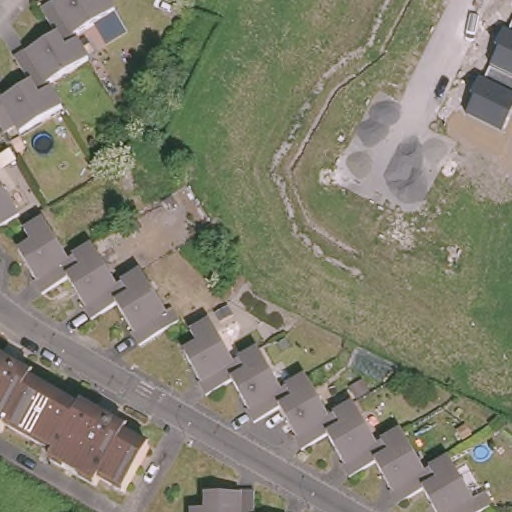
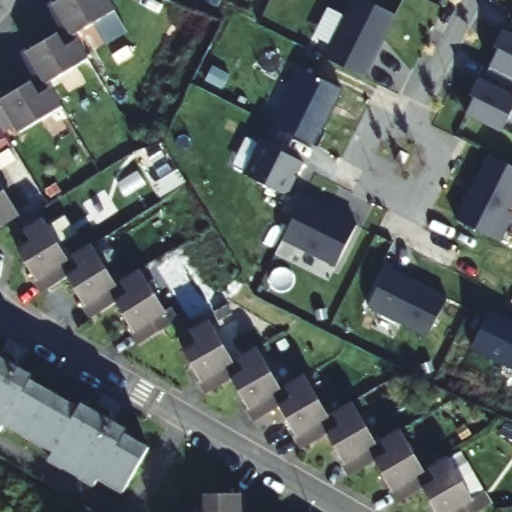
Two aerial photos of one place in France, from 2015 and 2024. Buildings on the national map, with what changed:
unchanged [(5,98),(35,81),(19,55),(32,48),(33,50),(60,34),(45,7),(58,0),(60,1),(61,0),(114,0),(120,10),(78,34),(82,39),(92,58),(52,82),(55,88),(66,106),(23,131),(19,125),(8,131),(0,116),(0,89),(5,98)]
new [(367,0),(397,15),(365,78),(325,58),(354,0),(367,0)]
unchanged [(503,134),(465,114),(474,98),(470,95),(479,76),(485,79),(497,53),(492,51),(503,28),(508,30),(512,24),(512,116),(503,134)]
new [(277,122),(305,69),(342,88),(320,129),(325,133),(318,145),(277,122)]
new [(303,161),(288,194),(248,177),(264,141),(303,161)]
new [(512,211),(512,220),(502,242),(457,220),(472,192),(473,193),(475,188),(474,187),(490,154),(512,165),(512,210),(512,211)]
unchanged [(11,215),(0,221),(0,190),(14,213),(11,215)]
new [(285,235),(304,196),(357,221),(337,262),(285,235)]
unchanged [(120,327),(123,325),(107,297),(80,314),(72,301),(75,299),(57,272),(32,287),(24,274),(26,273),(8,244),(22,236),(14,223),(33,212),(58,253),(63,250),(82,239),(107,279),(111,277),(131,264),(156,305),(161,303),(168,315),(128,339),(120,327)]
new [(447,298),(428,337),(368,307),(387,268),(447,298)]
new [(507,365),(507,362),(473,346),(492,309),(512,320),(512,367),(507,365)]
unchanged [(435,512),(434,512),(417,483),(392,497),(385,485),(387,484),(370,456),(345,471),(337,459),(338,457),(322,429),(297,444),(288,432),(291,430),(275,402),(248,416),(240,403),(242,402),(227,374),(202,389),(193,376),(195,375),(178,346),(192,338),(185,326),(205,314),(228,355),(232,353),(252,342),(275,383),(280,380),(300,369),(324,411),(329,408),(348,397),(372,438),(377,435),(397,424),(420,465),(424,462),(443,451),(467,493),(480,486),(487,498),(462,512),(441,512),(440,509),(435,512)]
unchanged [(50,463),(54,455),(30,441),(5,427),(1,435),(0,434),(0,361),(32,380),(30,384),(55,398),(78,412),(82,407),(127,434),(125,438),(148,452),(124,495),(100,481),(95,488),(50,463)]
unchanged [(192,498),(225,498),(225,495),(239,495),(239,512),(192,512),(192,498)]

